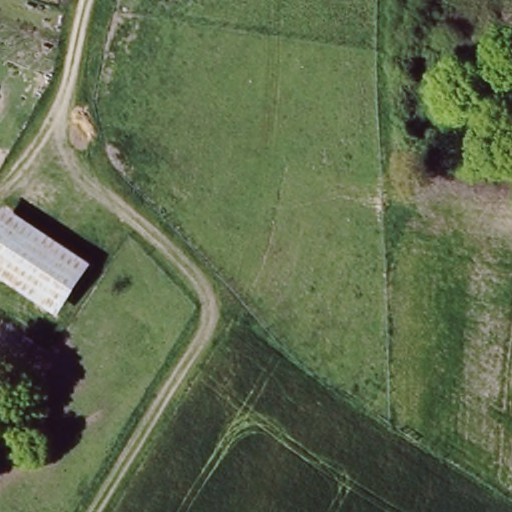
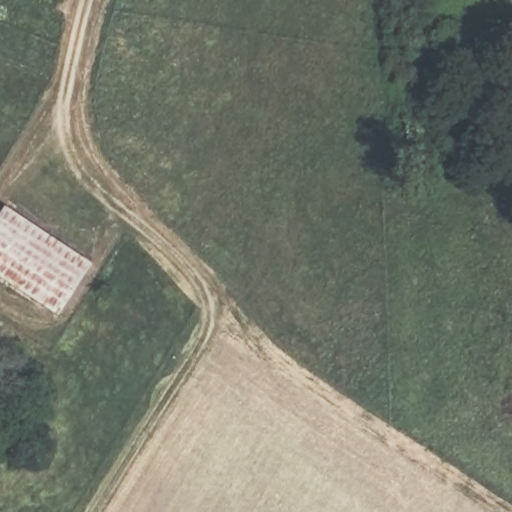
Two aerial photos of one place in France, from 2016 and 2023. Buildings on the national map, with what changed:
unchanged [(0,207),(0,206),(83,252),(50,319),(0,292),(0,207)]

